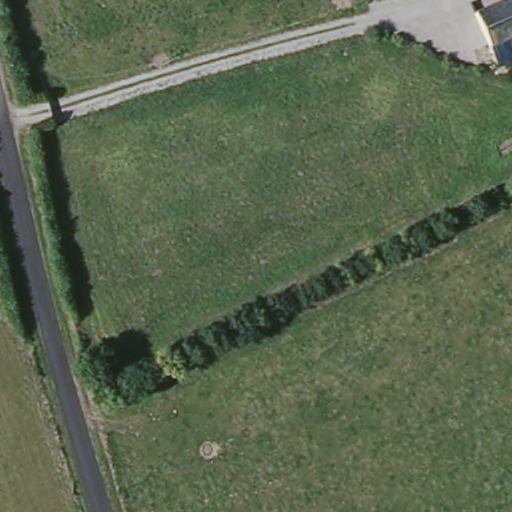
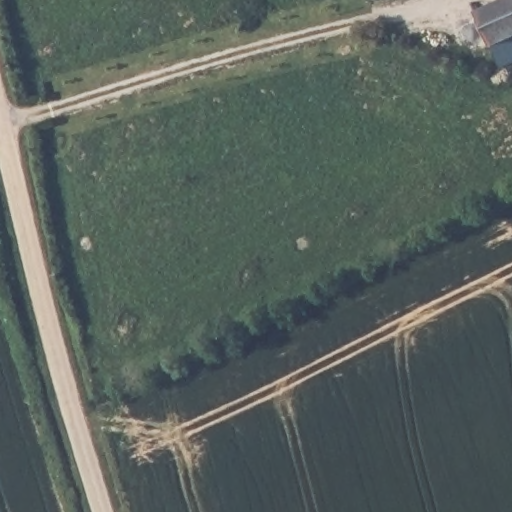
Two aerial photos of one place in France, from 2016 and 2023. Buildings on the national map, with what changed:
unchanged [(499,67),(492,45),(477,11),(502,0),(512,0),(512,62),(499,67)]

